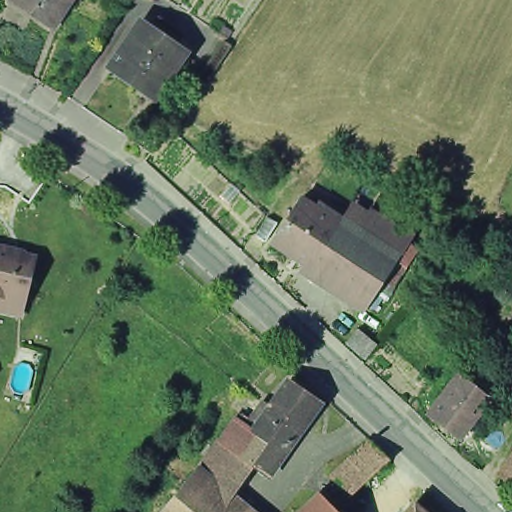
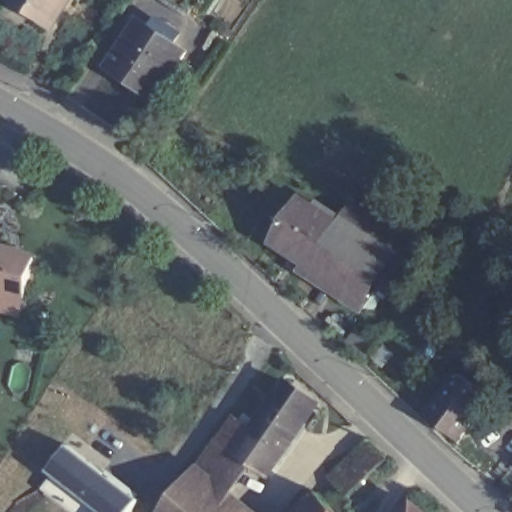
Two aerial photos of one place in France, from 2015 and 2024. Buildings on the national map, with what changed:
unchanged [(55,32),(2,0),(75,0),(55,32)]
unchanged [(159,24),(182,39),(174,50),(184,58),(156,101),(112,71),(141,28),(152,35),(159,24)]
unchanged [(364,312),(268,250),(296,208),(334,233),(392,269),(364,312)]
unchanged [(392,269),(334,233),(349,209),(391,234),(406,247),(392,269)]
unchanged [(2,247),(15,250),(14,251),(38,257),(24,314),(0,309),(0,248),(1,248),(2,247)]
unchanged [(426,423),(455,384),(468,369),(502,393),(494,404),(491,402),(486,408),(456,446),(426,423)]
unchanged [(162,512),(223,437),(236,418),(239,419),(242,416),(249,421),(262,403),(270,409),(289,383),(317,403),(266,475),(253,466),(228,497),(247,512),(162,512)]
unchanged [(324,499),(336,487),(329,479),(368,440),(387,457),(343,498),(349,505),(342,512),(300,512),(319,494),(324,499)]
new [(69,444),(119,481),(141,500),(132,512),(94,512),(47,472),(69,444)]
unchanged [(509,480),(512,476),(512,482),(509,480)]
unchanged [(434,512),(417,512),(424,503),(434,512)]

